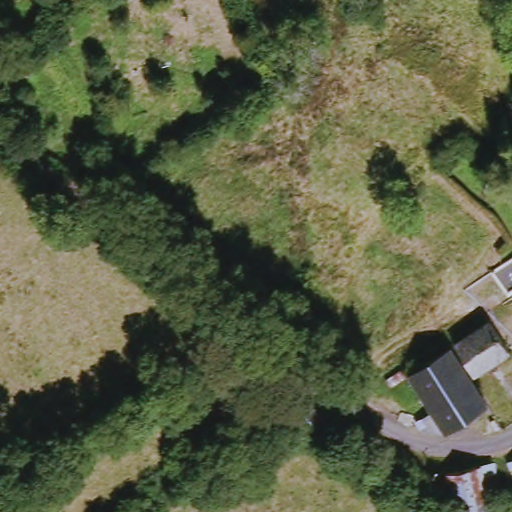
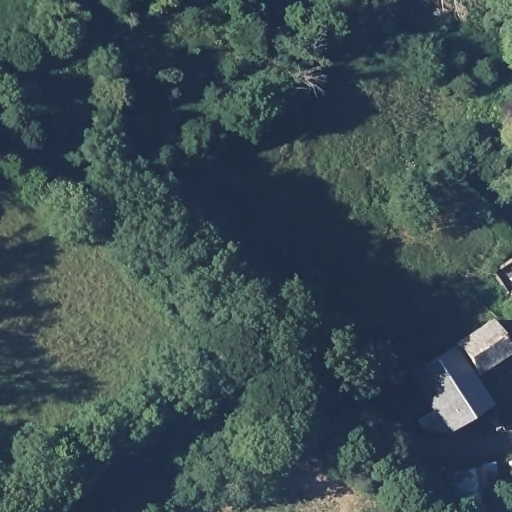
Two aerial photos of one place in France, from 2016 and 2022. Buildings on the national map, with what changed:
unchanged [(485,269),(512,252),(512,291),(505,296),(485,269)]
unchanged [(503,352),(490,361),(495,368),(485,375),(480,367),(469,374),(450,345),(484,323),(503,352)]
unchanged [(406,375),(444,350),(481,407),(442,431),(411,424),(429,412),(406,375)]
unchanged [(327,431),(317,434),(290,415),(305,400),(328,414),(327,431)]
unchanged [(509,484),(500,457),(512,454),(512,483),(509,484)]
unchanged [(463,512),(448,512),(439,471),(483,459),(497,504),(463,512)]

